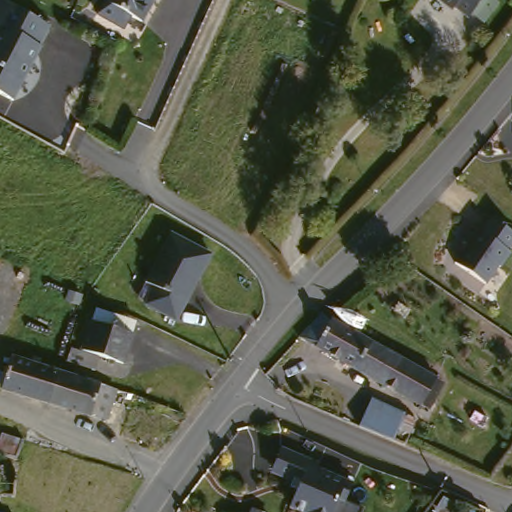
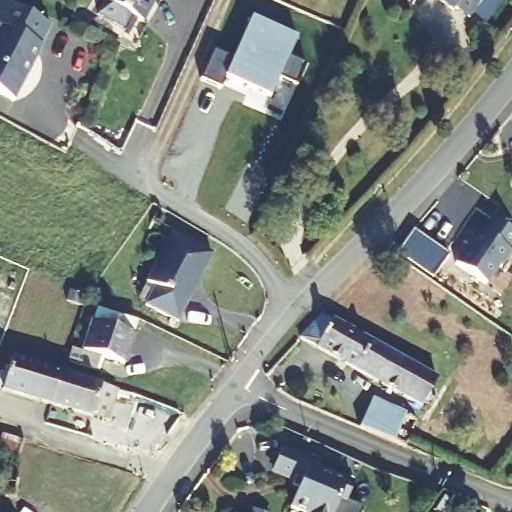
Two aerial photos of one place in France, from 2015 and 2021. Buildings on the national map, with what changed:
unchanged [(53,25),(43,46),(44,46),(17,100),(13,98),(0,92),(0,0),(2,0),(53,25)]
unchanged [(139,25),(104,6),(108,0),(156,0),(139,25)]
unchanged [(474,20),(448,0),(490,0),(474,20)]
new [(214,49),(234,58),(252,17),(298,37),(290,56),(307,64),(297,87),(280,79),(271,96),(227,76),(222,88),(201,79),(214,49)]
unchanged [(480,229),(489,235),(499,221),(512,230),(512,262),(506,270),(504,268),(491,286),(461,265),(474,246),(469,243),(480,229)]
new [(413,230),(449,255),(433,278),(396,252),(413,230)]
unchanged [(173,236),(214,255),(183,325),(182,325),(150,311),(158,293),(149,288),(173,236)]
unchanged [(443,388),(430,418),(311,342),(335,320),(443,388)]
unchanged [(77,365),(86,335),(90,325),(130,337),(125,349),(117,378),(77,365)]
unchanged [(64,377),(54,406),(9,392),(19,363),(64,377)]
unchanged [(119,395),(109,422),(54,406),(64,377),(119,395)]
unchanged [(375,403),(410,418),(400,444),(364,428),(375,403)]
unchanged [(20,420),(16,428),(1,420),(6,412),(20,420)]
unchanged [(316,471),(353,485),(346,502),(340,500),(335,512),(298,512),(291,509),(301,482),(272,471),(279,450),(318,465),(316,471)]
unchanged [(12,482),(12,491),(0,488),(0,457),(3,458),(13,462),(12,482)]

